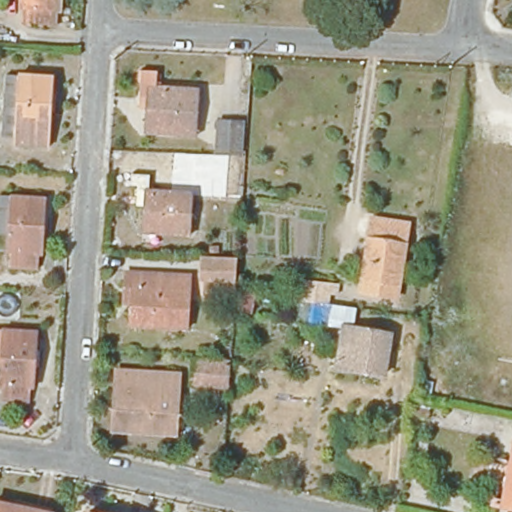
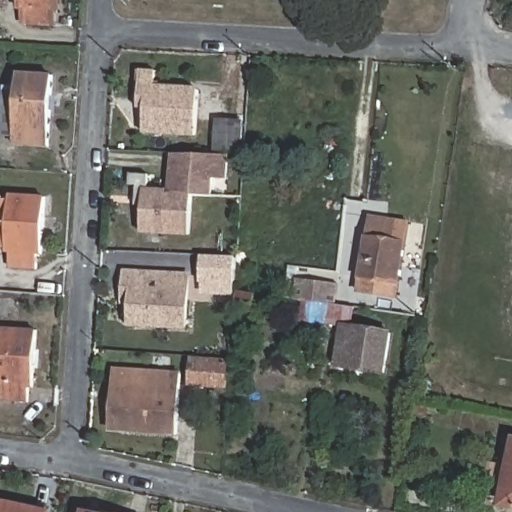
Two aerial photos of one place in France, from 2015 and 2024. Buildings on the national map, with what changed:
unchanged [(45,14),(44,28),(19,27),(20,13),(17,13),(17,0),(51,0),(51,14),(45,14)]
unchanged [(141,75),(158,76),(157,92),(198,95),(196,137),(147,134),(148,113),(141,112),(143,86),(140,86),(141,75)]
unchanged [(12,79),(46,81),(41,149),(8,148),(12,79)]
unchanged [(245,128),(242,158),(219,156),(222,125),(245,128)]
new [(215,195),(193,195),(187,204),(146,200),(146,187),(168,188),(172,154),(219,154),(219,156),(229,157),(227,180),(215,179),(215,195)]
demolished [(208,160),(208,177),(168,174),(169,159),(208,160)]
unchanged [(186,240),(136,238),(137,197),(129,197),(130,185),(146,187),(146,200),(187,204),(186,240)]
unchanged [(44,254),(38,254),(37,269),(12,268),(14,253),(12,253),(14,198),(48,199),(44,254)]
unchanged [(408,230),(394,307),(355,300),(370,223),(408,230)]
unchanged [(201,277),(202,257),(234,257),(232,284),(232,289),(217,288),(201,287),(201,277)]
unchanged [(187,277),(183,330),(128,327),(129,306),(122,305),(123,290),(124,273),(187,277)]
unchanged [(298,275),(336,282),(334,295),(325,294),(322,304),(353,309),(351,329),(388,335),(381,378),(334,369),(339,333),(291,325),(295,299),(298,275)]
unchanged [(0,331),(6,332),(39,333),(35,388),(30,388),(29,403),(5,402),(5,388),(2,387),(0,387),(0,331)]
unchanged [(224,359),(222,384),(186,382),(189,356),(224,359)]
unchanged [(115,374),(121,375),(139,376),(179,379),(177,396),(176,436),(127,431),(110,430),(112,412),(115,374)]
unchanged [(488,489),(492,471),(511,475),(512,470),(512,511),(502,509),(485,507),(488,489)]
unchanged [(0,502),(48,512),(0,512),(0,502)]

